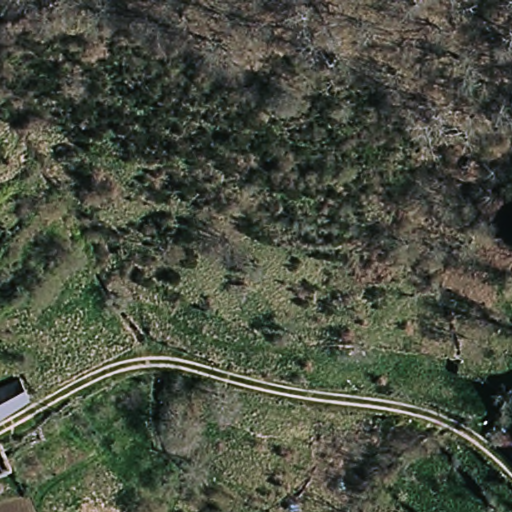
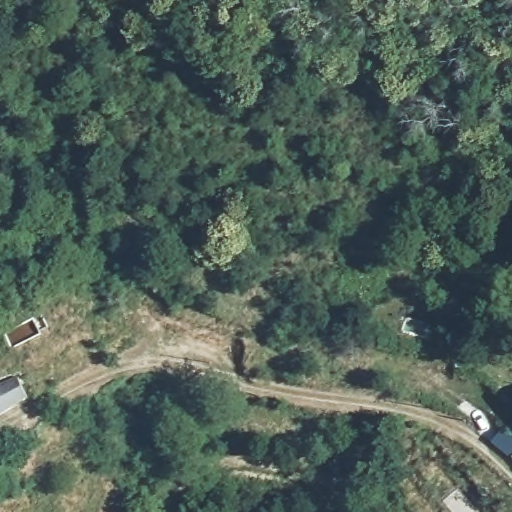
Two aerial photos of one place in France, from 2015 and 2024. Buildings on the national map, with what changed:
unchanged [(19,378),(29,403),(0,421),(0,387),(19,378)]

